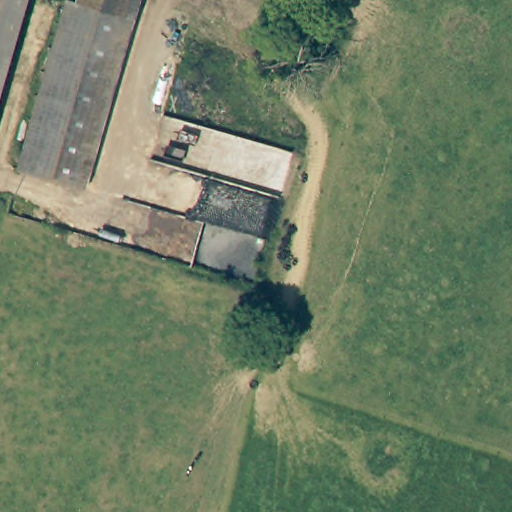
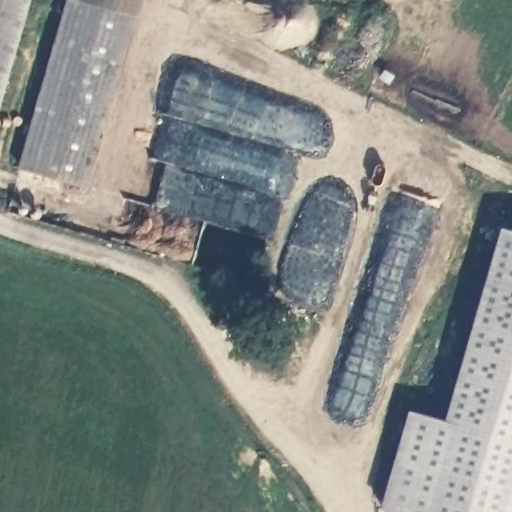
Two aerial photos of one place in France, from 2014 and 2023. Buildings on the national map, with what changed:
unchanged [(0,0),(31,0),(0,118),(0,0)]
unchanged [(73,185),(11,169),(51,0),(64,4),(115,16),(73,185)]
unchanged [(73,185),(115,16),(64,4),(65,0),(143,0),(96,191),(73,185)]
new [(413,413),(463,428),(512,260),(512,512),(390,512),(385,511),(413,413)]

